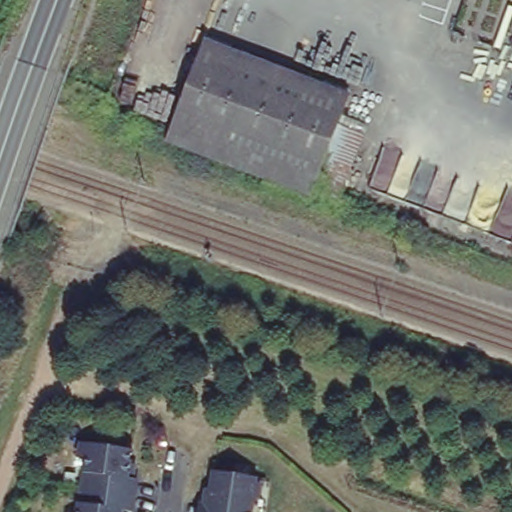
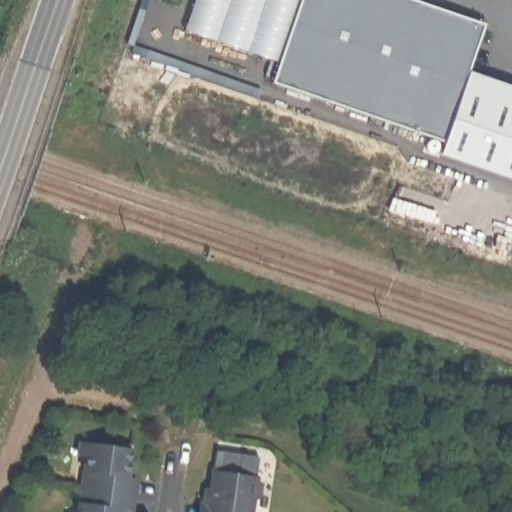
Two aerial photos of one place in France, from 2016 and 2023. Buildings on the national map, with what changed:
new [(472,73),(512,88),(512,188),(411,152),(416,137),(250,79),(257,57),(176,29),(187,0),(422,0),(489,25),(472,73)]
demolished [(347,87),(336,116),(352,123),(339,157),(328,187),(310,180),(169,125),(205,32),(347,87)]
unchanged [(91,439),(133,444),(129,470),(139,470),(132,507),(125,506),(125,512),(80,512),(91,439)]
unchanged [(193,498),(203,499),(208,467),(252,473),(247,512),(192,512),(193,498)]

